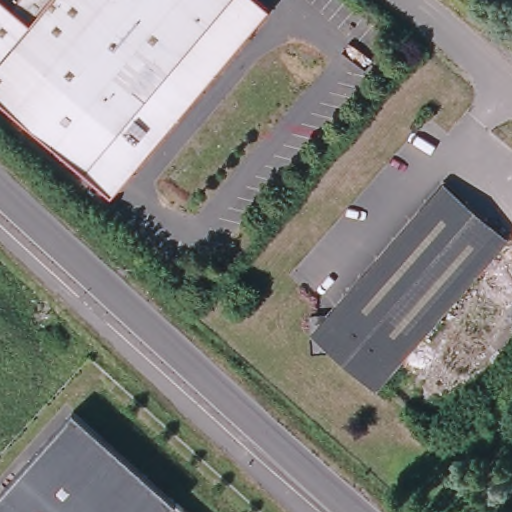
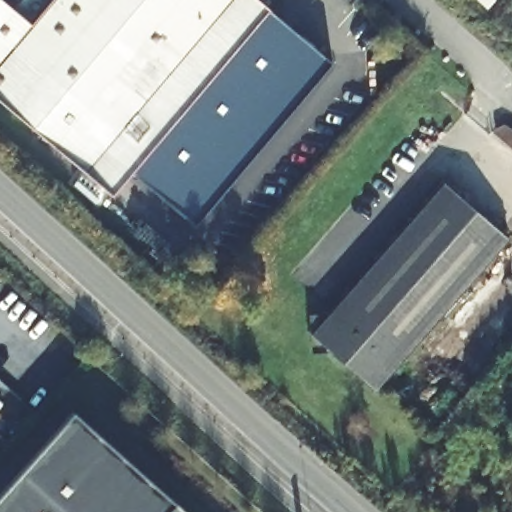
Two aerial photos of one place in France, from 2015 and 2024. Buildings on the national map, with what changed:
unchanged [(269,10),(114,194),(0,98),(0,0),(257,0),(269,10)]
new [(330,65),(196,224),(132,172),(269,10),(330,65)]
unchanged [(308,330),(440,180),(504,236),(372,387),(308,330)]
unchanged [(186,512),(0,512),(0,492),(73,411),(186,512)]

